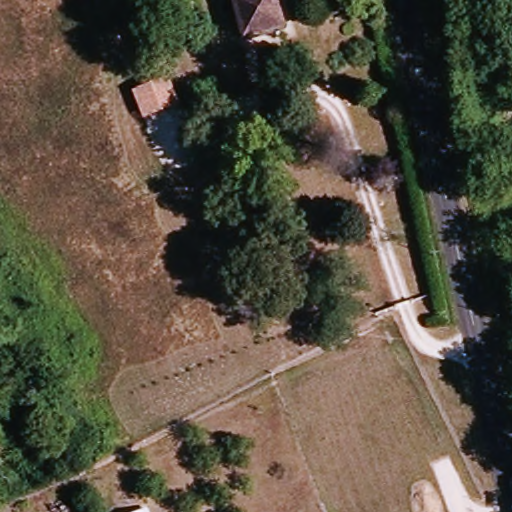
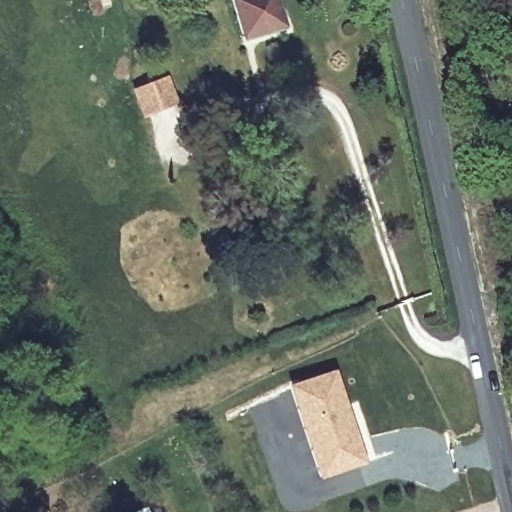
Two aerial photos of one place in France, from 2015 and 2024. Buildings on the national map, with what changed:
unchanged [(297,22),(257,33),(247,0),(292,0),(297,22)]
new [(289,385),(335,370),(365,462),(320,478),(289,385)]
unchanged [(144,512),(158,504),(162,512),(144,512)]

